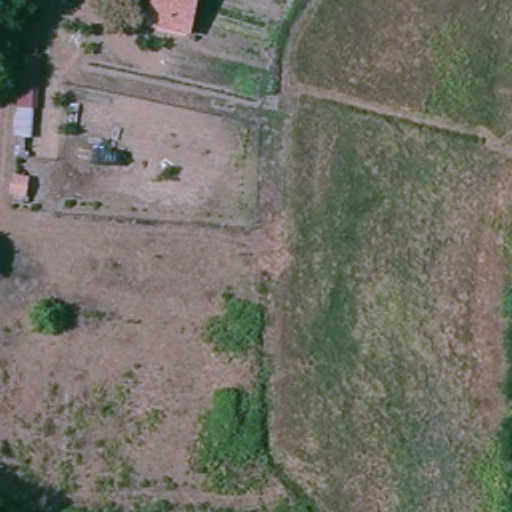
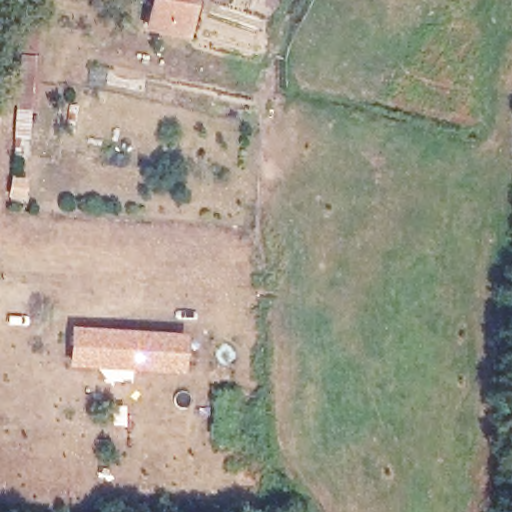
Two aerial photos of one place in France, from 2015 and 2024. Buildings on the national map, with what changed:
unchanged [(190,35),(152,31),(155,0),(195,0),(190,35)]
unchanged [(26,143),(25,163),(14,159),(22,57),(44,61),(34,143),(26,143)]
demolished [(144,355),(80,350),(80,317),(148,322),(144,355)]
new [(185,374),(69,367),(72,326),(189,333),(185,374)]
demolished [(160,380),(157,380),(152,418),(128,413),(136,362),(162,368),(160,380)]

